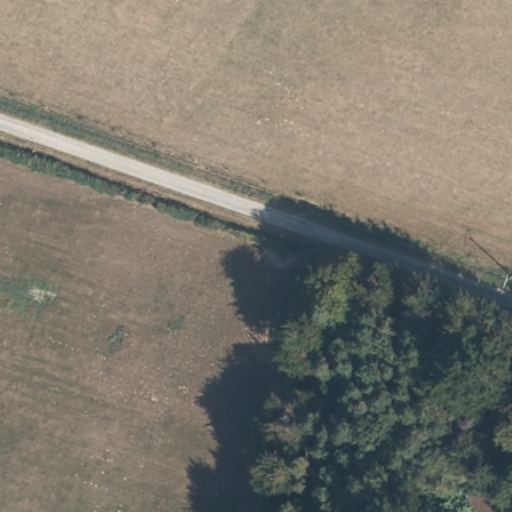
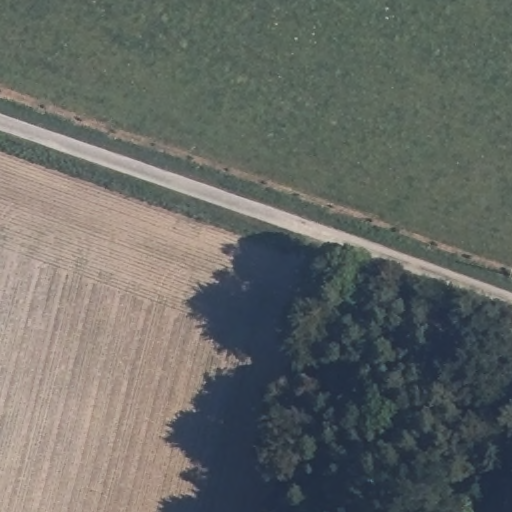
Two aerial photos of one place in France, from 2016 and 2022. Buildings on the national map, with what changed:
unchanged [(507,512),(476,512),(479,491),(509,496),(507,512)]

